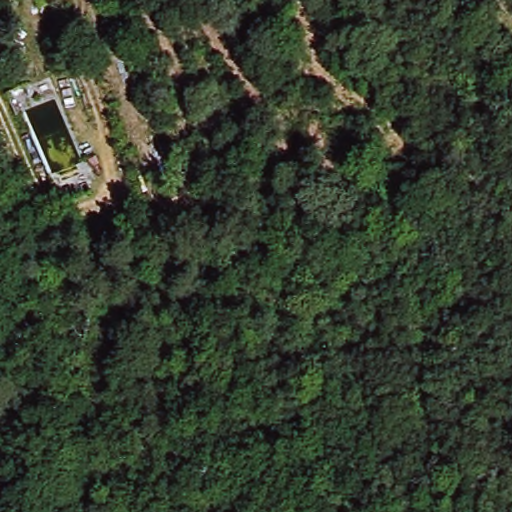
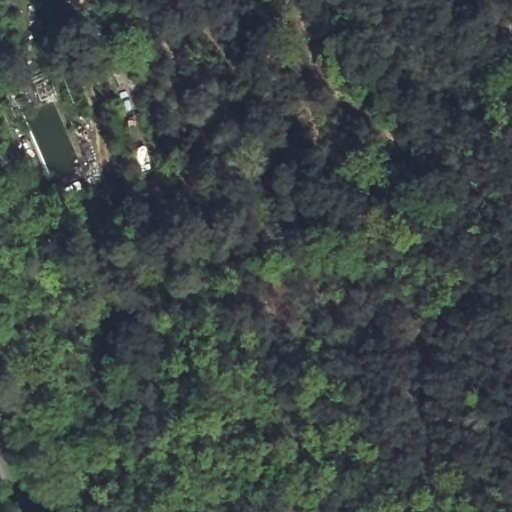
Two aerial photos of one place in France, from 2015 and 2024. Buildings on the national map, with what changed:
unchanged [(52,1),(52,0),(58,0),(52,1)]

